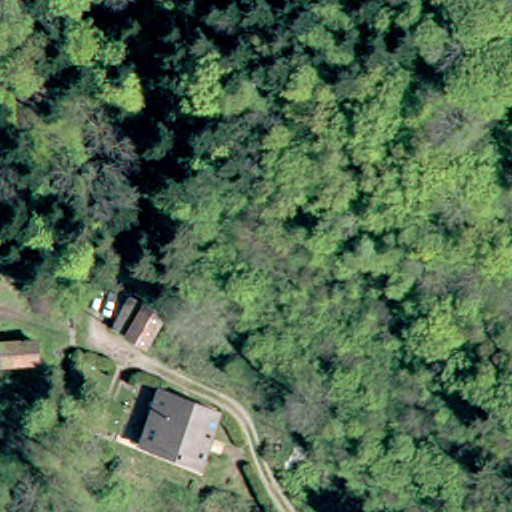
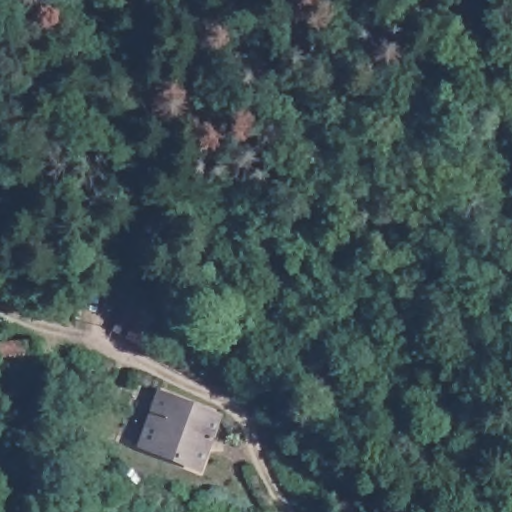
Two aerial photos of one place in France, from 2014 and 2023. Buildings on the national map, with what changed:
unchanged [(141,304),(178,321),(153,359),(131,348),(141,304)]
unchanged [(3,359),(43,356),(45,375),(6,378),(3,359)]
unchanged [(181,405),(226,423),(203,476),(143,454),(164,398),(181,405)]

